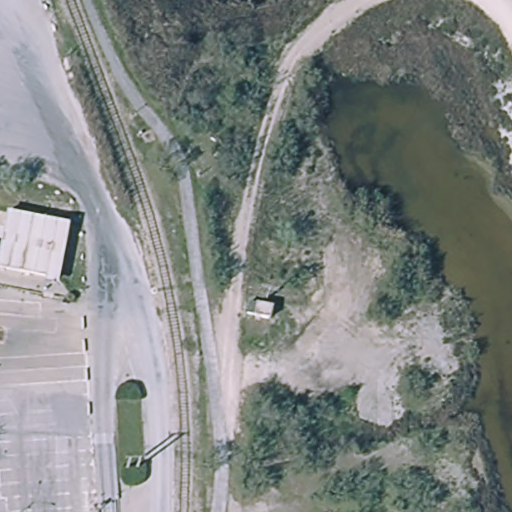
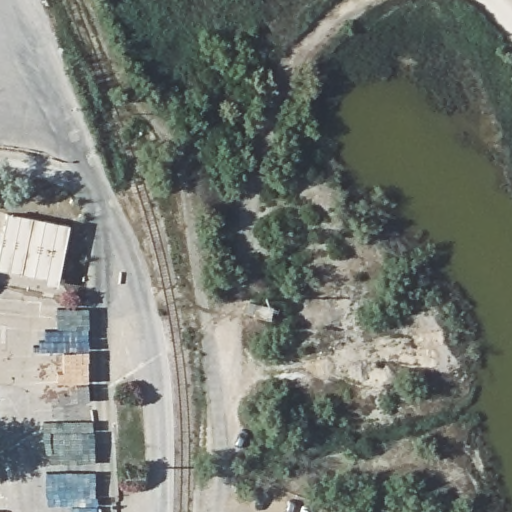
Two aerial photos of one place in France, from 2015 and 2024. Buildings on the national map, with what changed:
unchanged [(70,220),(59,275),(0,263),(0,243),(7,208),(70,220)]
unchanged [(254,315),(248,314),(250,302),(256,304),(254,315)]
unchanged [(273,307),(271,319),(255,316),(257,304),(273,307)]

